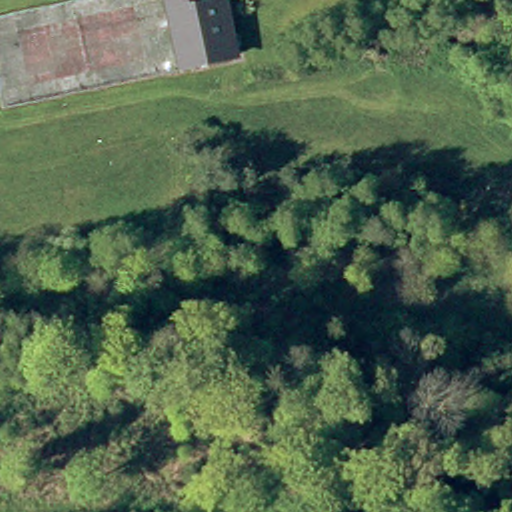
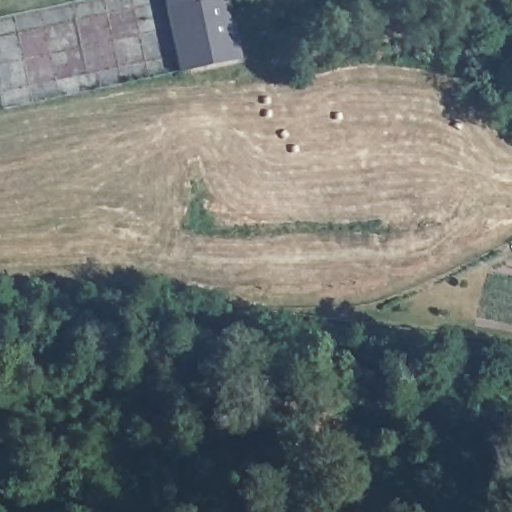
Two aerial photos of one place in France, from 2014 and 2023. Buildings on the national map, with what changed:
unchanged [(215,3),(225,1),(237,56),(182,68),(166,0),(214,0),(215,3)]

